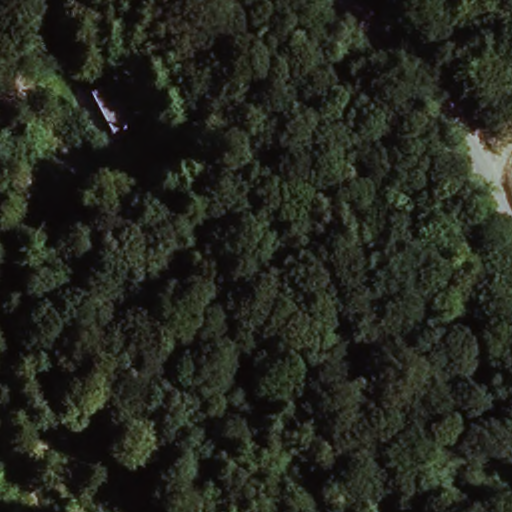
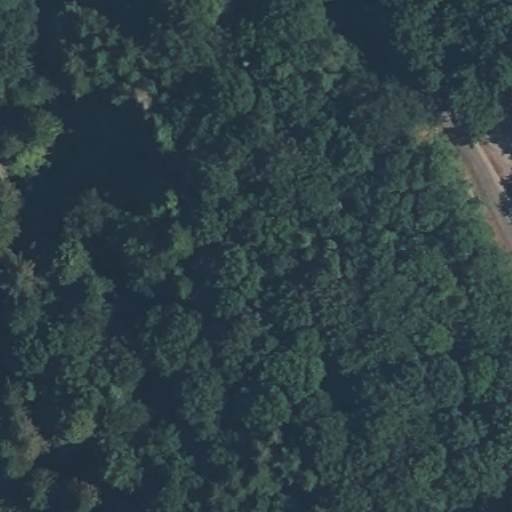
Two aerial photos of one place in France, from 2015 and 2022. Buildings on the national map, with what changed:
unchanged [(63,79),(38,101),(15,75),(41,54),(63,79)]
unchanged [(101,91),(95,74),(111,69),(127,104),(136,99),(146,125),(111,139),(90,96),(101,91)]

